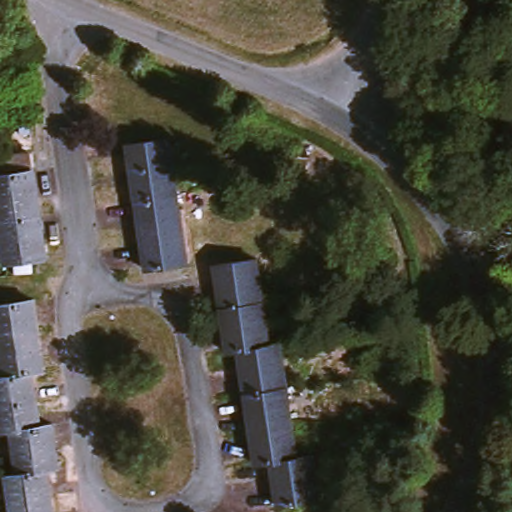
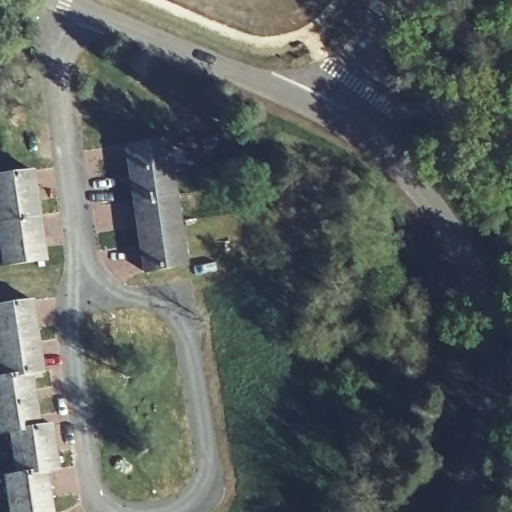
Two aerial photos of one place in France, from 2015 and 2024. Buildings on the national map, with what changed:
unchanged [(148,270),(131,149),(170,142),(187,265),(148,270)]
unchanged [(31,174),(46,260),(5,267),(0,242),(0,179),(31,174)]
demolished [(227,350),(215,263),(255,258),(267,343),(278,341),(293,455),(308,454),(315,496),(275,502),(269,460),(252,461),(238,348),(227,350)]
unchanged [(57,466),(45,468),(51,512),(5,512),(0,486),(0,477),(13,475),(7,430),(0,431),(0,305),(30,300),(42,371),(30,373),(38,426),(50,423),(57,466)]

